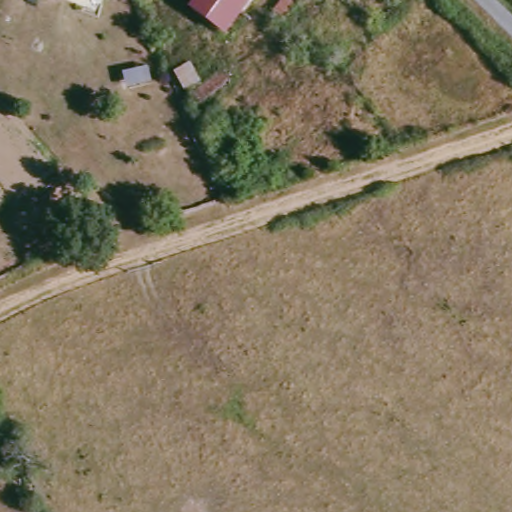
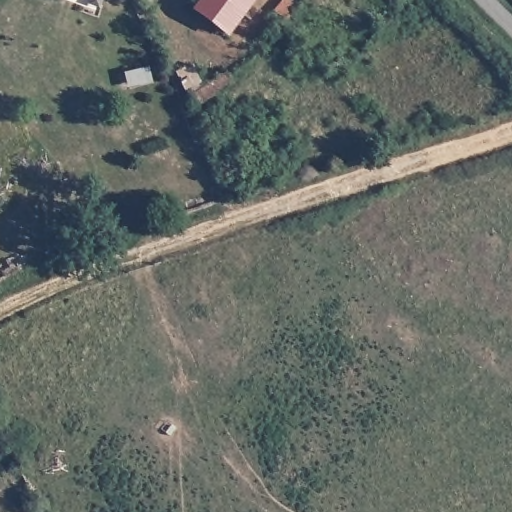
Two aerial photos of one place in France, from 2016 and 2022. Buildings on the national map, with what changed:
unchanged [(192,18),(204,0),(261,0),(229,45),(192,18)]

